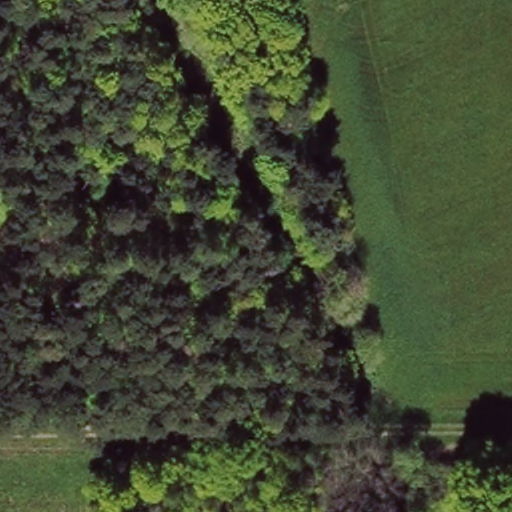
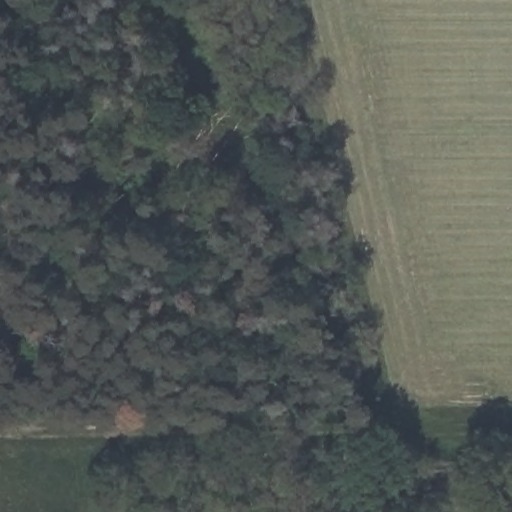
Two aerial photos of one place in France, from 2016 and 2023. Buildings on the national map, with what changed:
[]

